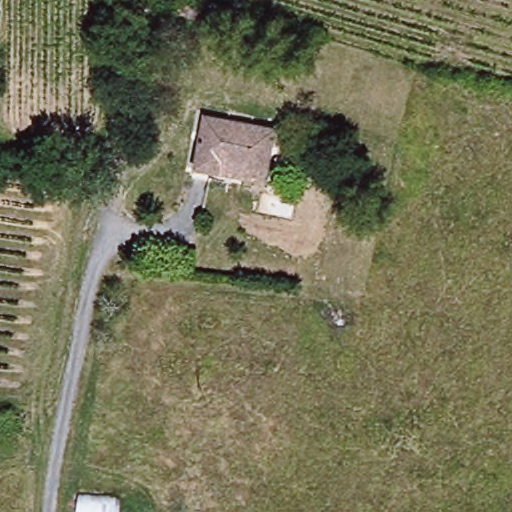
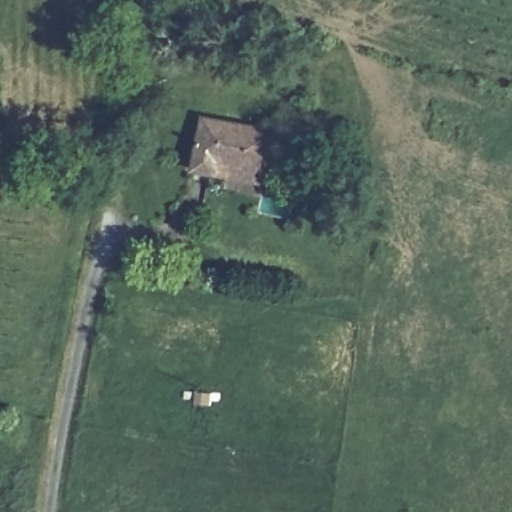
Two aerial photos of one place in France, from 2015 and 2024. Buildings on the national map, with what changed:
unchanged [(271,174),(223,164),(221,175),(195,169),(206,116),(279,131),(271,174)]

